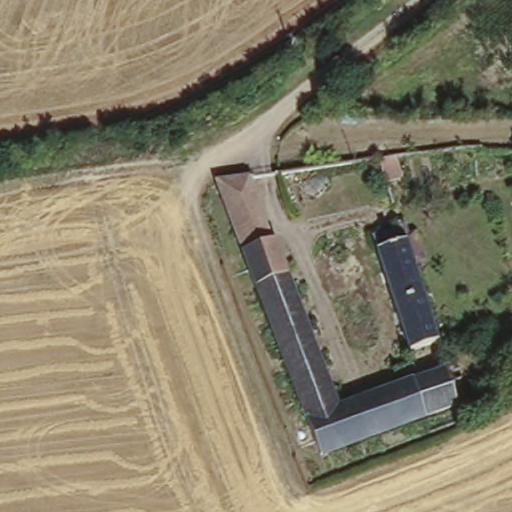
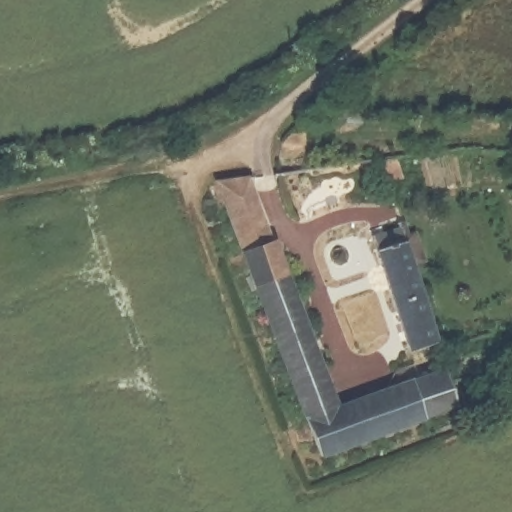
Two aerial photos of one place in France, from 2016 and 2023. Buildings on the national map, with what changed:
unchanged [(381,156),(392,155),(402,177),(391,179),(381,156)]
unchanged [(221,180),(255,175),(279,238),(247,250),(221,180)]
unchanged [(419,234),(427,259),(418,262),(444,340),(415,349),(376,234),(405,223),(410,237),(419,234)]
unchanged [(247,250),(279,238),(282,237),(345,405),(451,368),(465,404),(326,457),(247,250)]

